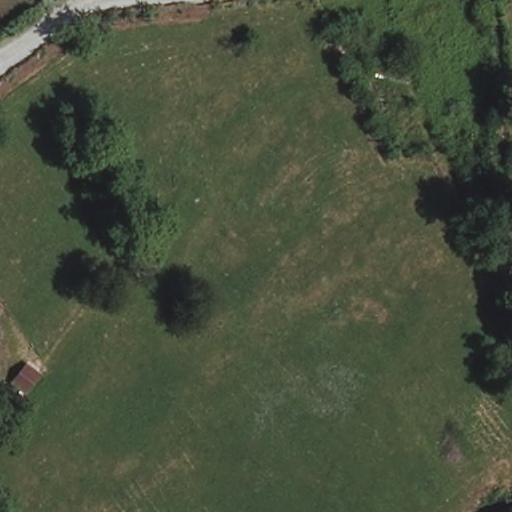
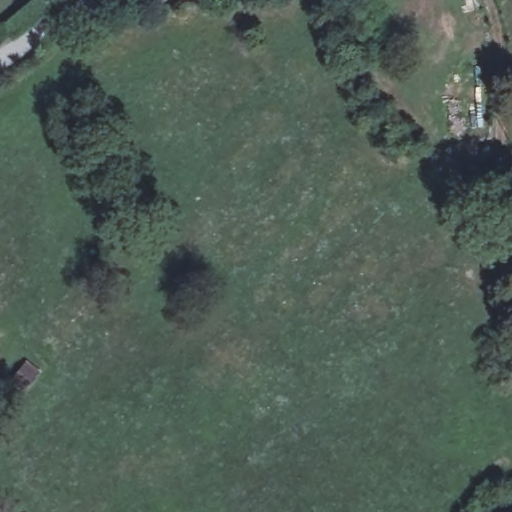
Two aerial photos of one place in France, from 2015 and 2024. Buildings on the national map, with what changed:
[]

